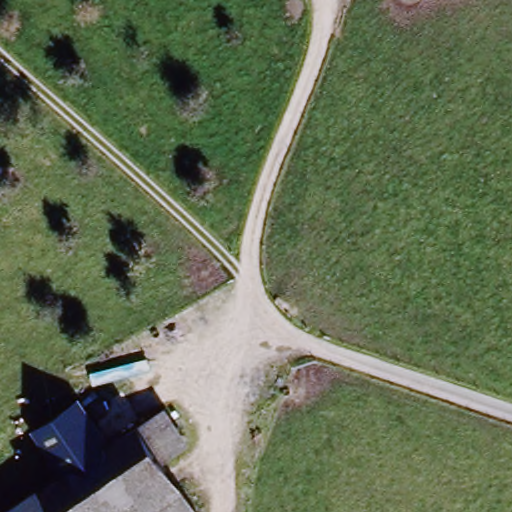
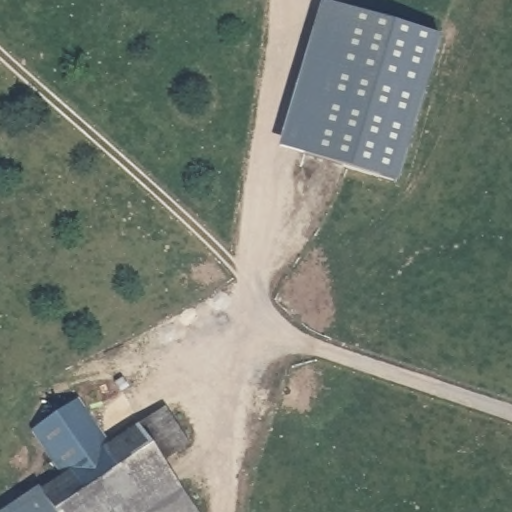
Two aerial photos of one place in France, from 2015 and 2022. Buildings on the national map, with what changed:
new [(320,5),(440,35),(404,181),(282,150),(320,5)]
unchanged [(0,511),(37,486),(30,474),(49,461),(29,431),(80,397),(110,442),(164,406),(189,444),(164,461),(198,512),(0,512),(0,511)]

